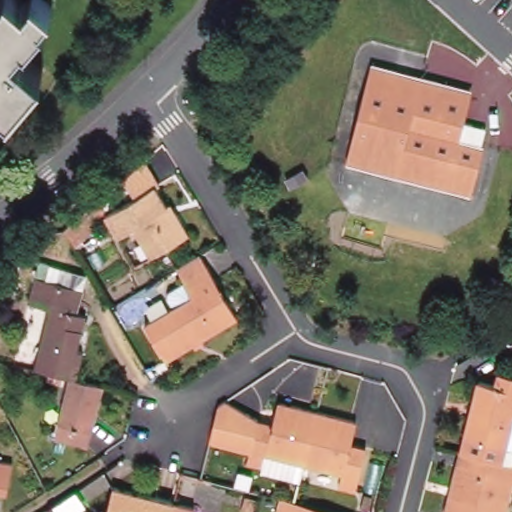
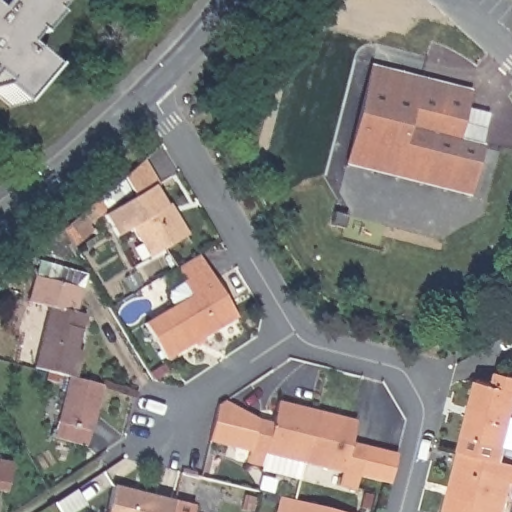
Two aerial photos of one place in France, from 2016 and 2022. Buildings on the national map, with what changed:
unchanged [(49,0),(54,4),(44,16),(46,18),(29,39),(25,36),(16,46),(44,70),(12,106),(10,109),(0,101),(0,0),(49,0)]
unchanged [(464,119),(488,125),(471,192),(345,160),(371,59),(473,86),(464,119)]
unchanged [(142,246),(134,231),(119,240),(105,217),(136,200),(125,181),(145,163),(160,189),(156,191),(172,218),(176,216),(190,239),(157,258),(151,262),(142,246)]
unchanged [(77,237),(70,228),(100,202),(108,211),(77,237)]
unchanged [(166,360),(145,325),(173,307),(167,297),(168,291),(207,267),(237,317),(166,360)]
unchanged [(50,307),(29,303),(35,277),(83,289),(77,313),(86,316),(77,351),(83,352),(76,379),(70,377),(35,368),(50,307)]
unchanged [(117,317),(112,307),(116,305),(127,298),(132,307),(117,317)]
unchanged [(478,380),(495,385),(497,372),(512,375),(512,447),(507,446),(504,461),(460,451),(464,436),(478,380)]
unchanged [(88,446),(55,437),(70,377),(76,379),(104,386),(88,446)]
unchanged [(300,481),(263,472),(264,468),(247,464),(250,456),(209,446),(218,410),(220,408),(258,421),(273,424),(279,402),(317,412),(305,464),(300,481)]
unchanged [(338,486),(342,473),(305,464),(317,412),(356,422),(351,444),(366,447),(365,452),(355,491),(338,486)]
unchanged [(449,496),(451,488),(460,451),(504,461),(512,462),(512,488),(506,512),(445,512),(449,496)]
unchanged [(13,462),(6,493),(0,492),(0,460),(13,462)]
unchanged [(172,512),(107,512),(114,487),(175,502),(172,512)]
unchanged [(282,497),(292,500),(313,506),(339,512),(279,512),(282,497)]
unchanged [(175,502),(195,507),(193,512),(172,512),(175,502)]

